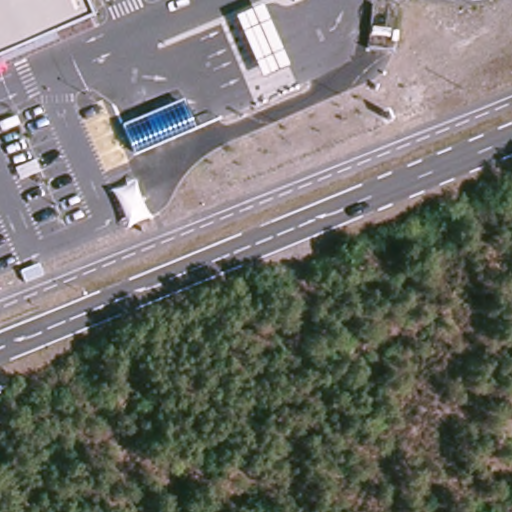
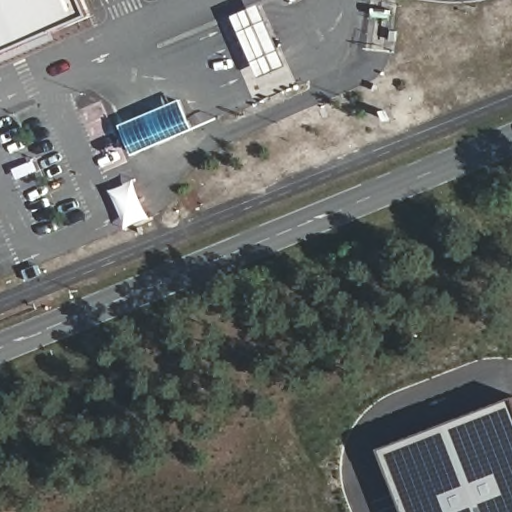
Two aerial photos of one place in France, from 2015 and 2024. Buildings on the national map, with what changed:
unchanged [(0,55),(0,0),(84,0),(91,17),(0,55)]
unchanged [(259,79),(233,18),(262,6),(288,67),(259,79)]
unchanged [(193,130),(131,157),(118,126),(182,101),(193,130)]
new [(512,512),(405,512),(379,448),(512,399),(512,512)]

